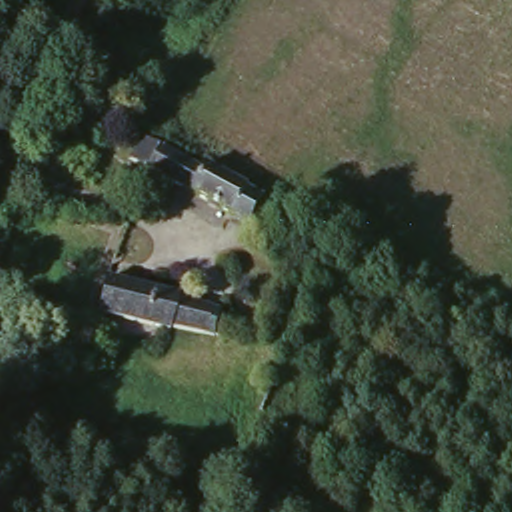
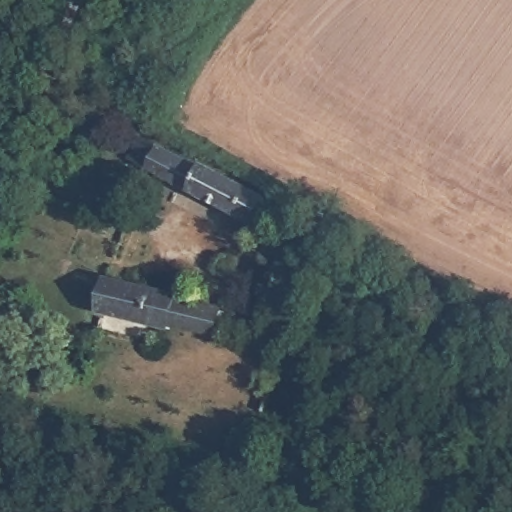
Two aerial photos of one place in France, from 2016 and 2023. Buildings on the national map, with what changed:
unchanged [(155,140),(155,143),(201,168),(205,163),(261,193),(246,221),(130,152),(142,132),(155,140)]
unchanged [(180,298),(178,303),(222,316),(219,338),(170,327),(164,331),(95,312),(90,311),(98,276),(180,298)]

